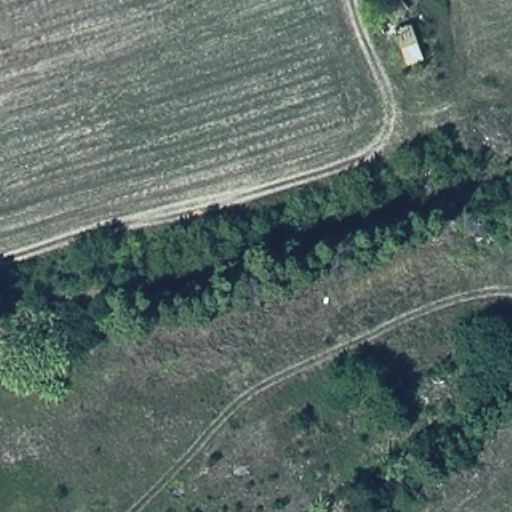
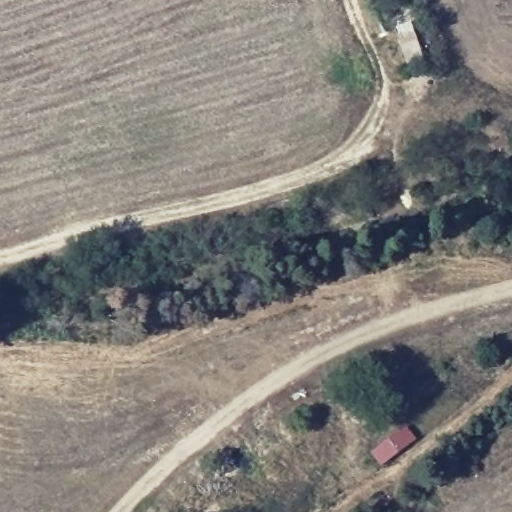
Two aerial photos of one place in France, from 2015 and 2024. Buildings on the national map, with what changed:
unchanged [(407,66),(392,31),(378,35),(367,9),(390,0),(401,0),(424,59),(407,66)]
unchanged [(402,424),(392,393),(445,379),(454,405),(402,424)]

